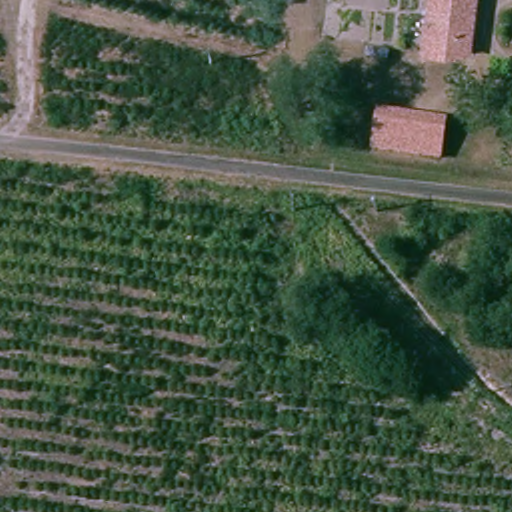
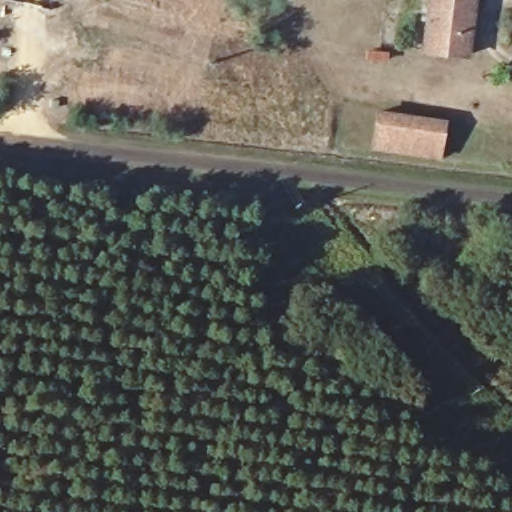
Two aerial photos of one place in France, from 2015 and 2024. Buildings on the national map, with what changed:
unchanged [(476,0),(461,56),(419,53),(431,0),(476,0)]
unchanged [(453,117),(446,156),(374,146),(379,109),(453,117)]

